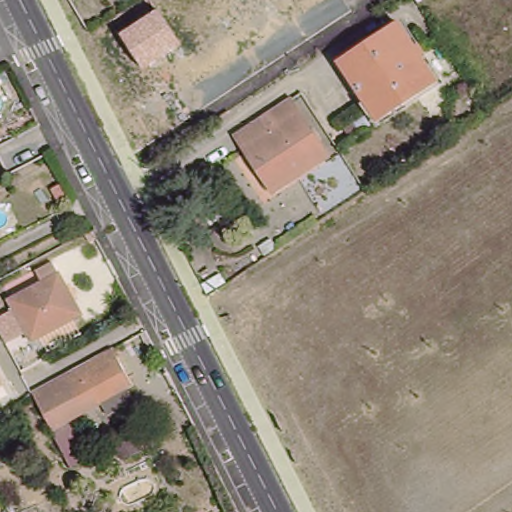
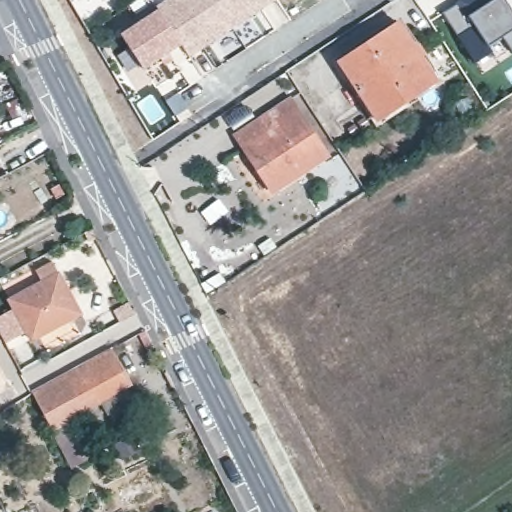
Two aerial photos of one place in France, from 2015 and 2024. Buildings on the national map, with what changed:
new [(275,0),(189,58),(182,46),(158,9),(156,5),(165,0),(275,0)]
new [(512,53),(502,38),(489,47),(493,54),(475,65),(442,15),(465,0),(504,0),(512,12),(512,53)]
unchanged [(143,70),(120,35),(158,9),(182,46),(143,70)]
unchanged [(400,19),(438,76),(377,117),(338,60),(400,19)]
unchanged [(323,146),(270,181),(232,125),(285,90),(323,146)]
unchanged [(370,120),(350,134),(342,121),(362,107),(370,120)]
unchanged [(22,310),(17,301),(49,284),(42,270),(58,261),(88,315),(38,340),(33,330),(24,335),(13,316),(22,310)]
unchanged [(31,399),(33,398),(110,355),(130,391),(124,394),(130,405),(103,419),(97,409),(65,427),(85,463),(69,470),(31,399)]
unchanged [(6,383),(0,387),(0,372),(6,383)]
unchanged [(135,437),(141,451),(123,460),(116,446),(135,437)]

